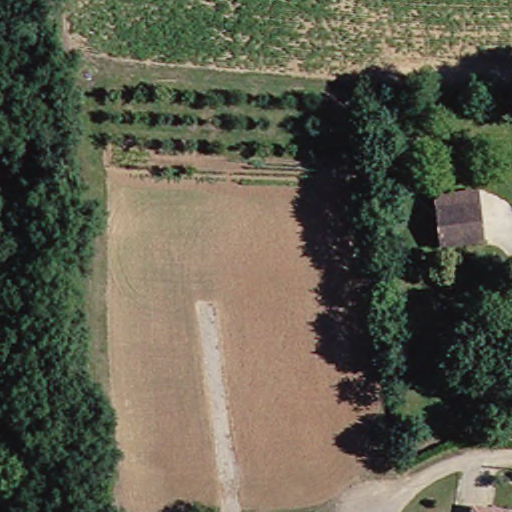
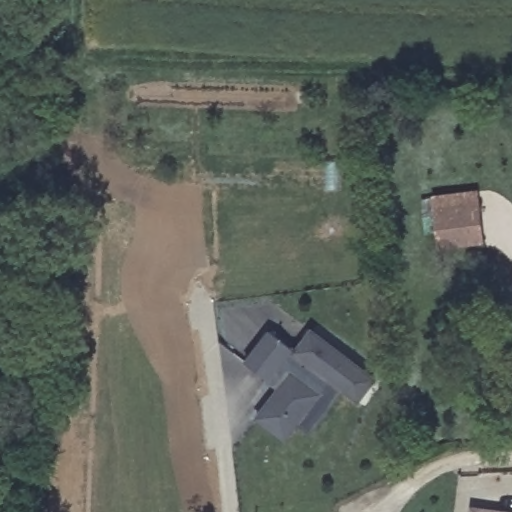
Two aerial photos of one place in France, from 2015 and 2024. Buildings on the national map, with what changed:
unchanged [(473,232),(430,239),(426,202),(469,197),(473,232)]
new [(277,390),(266,382),(269,379),(245,363),(268,332),(294,350),(311,330),(375,381),(357,402),(343,391),(311,432),(299,425),(286,441),(255,418),(277,390)]
unchanged [(505,512),(471,512),(472,507),(505,512)]

